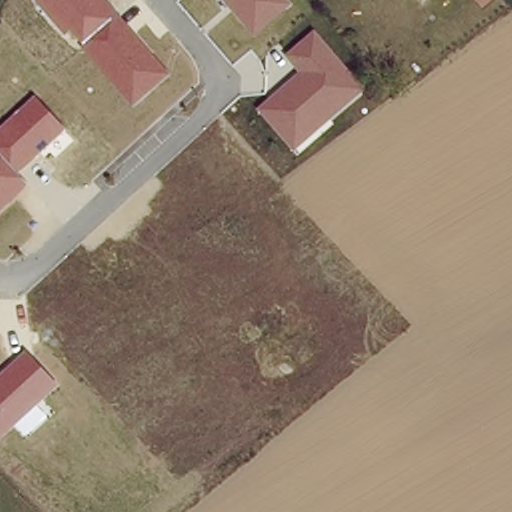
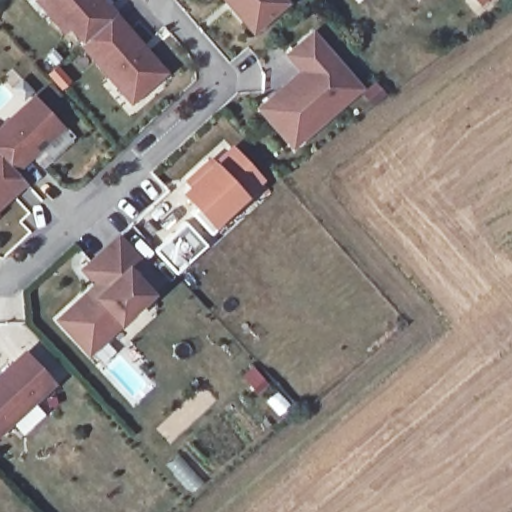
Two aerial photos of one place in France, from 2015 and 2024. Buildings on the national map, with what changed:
unchanged [(67,29),(63,32),(36,0),(105,0),(114,10),(78,42),(67,29)]
unchanged [(252,34),(223,0),(287,0),(289,2),(252,34)]
unchanged [(78,42),(114,10),(167,71),(131,104),(78,42)]
unchanged [(363,86),(292,149),(254,107),(297,70),(283,54),(312,29),(363,86)]
unchanged [(63,127),(15,171),(0,156),(0,123),(32,94),(63,127)]
new [(209,156),(213,160),(233,143),(264,180),(246,194),(223,216),(225,219),(210,232),(192,212),(195,210),(180,192),(186,186),(182,179),(209,156)]
unchanged [(15,171),(26,182),(0,207),(0,156),(15,171)]
new [(184,221),(205,246),(174,272),(153,249),(184,221)]
new [(87,356),(54,319),(92,285),(78,268),(118,233),(141,258),(131,267),(154,292),(122,318),(125,322),(87,356)]
unchanged [(22,350),(55,384),(0,434),(0,370),(22,350)]

